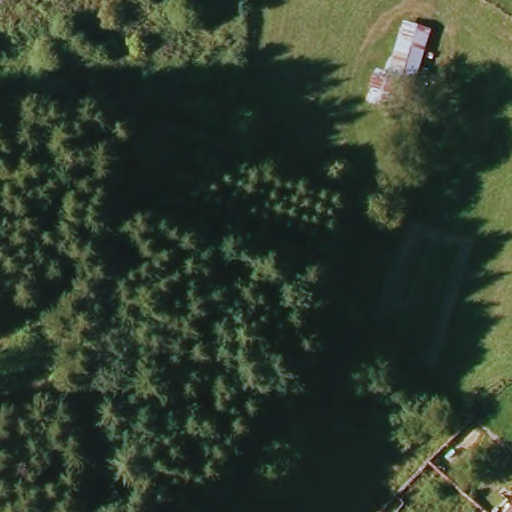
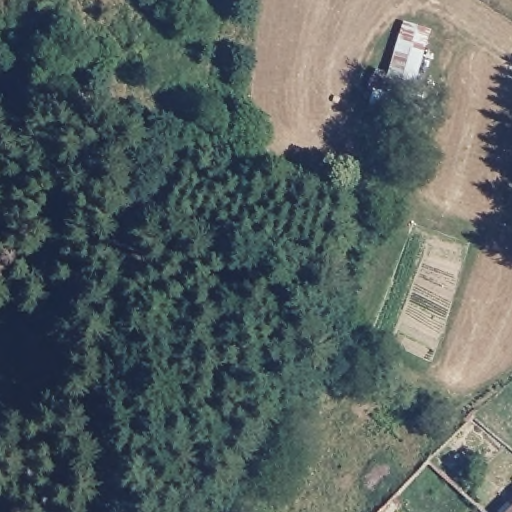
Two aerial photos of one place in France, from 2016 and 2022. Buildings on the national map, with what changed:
unchanged [(372,87),(362,85),(370,66),(384,71),(399,20),(429,28),(412,84),(395,81),(390,110),(364,104),(372,87)]
unchanged [(512,480),(512,489),(508,485),(512,480)]
unchanged [(391,490),(400,499),(388,512),(370,512),(391,490)]
unchanged [(475,500),(489,512),(464,512),(475,500)]
unchanged [(512,502),(512,512),(502,512),(512,502)]

